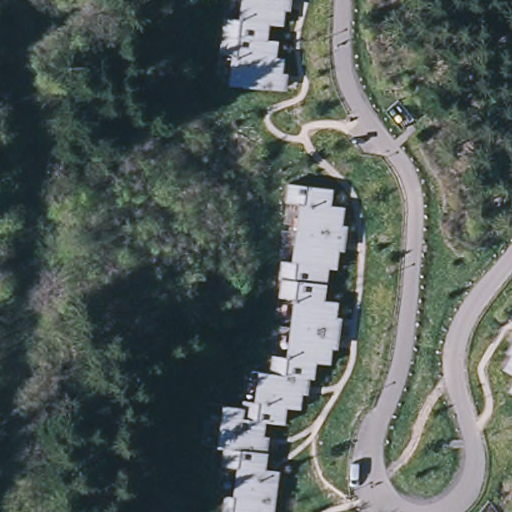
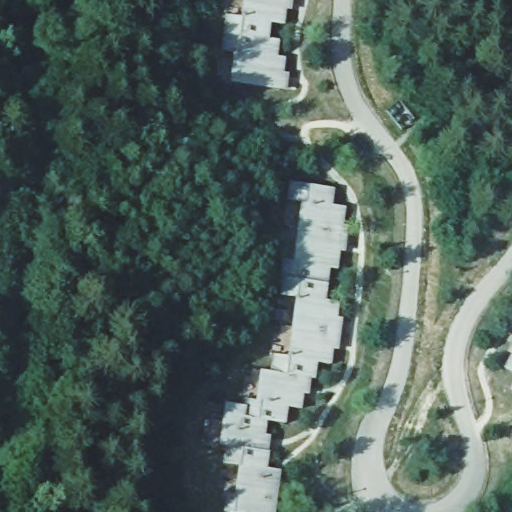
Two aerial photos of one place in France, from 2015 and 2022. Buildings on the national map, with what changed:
unchanged [(301,0),(301,3),(293,2),(292,8),(285,7),(283,24),(269,23),(267,39),(223,34),(226,16),(242,18),(244,0),(286,0),(286,2),(290,2),(290,0),(301,0)]
unchanged [(289,81),(297,82),(295,89),(284,88),(285,80),(282,80),(280,90),(233,84),(237,54),(222,52),(223,34),(267,39),(278,40),(276,57),(284,58),(282,74),(290,75),(289,81)]
unchanged [(345,231),(352,232),(350,244),(347,244),(347,250),(339,249),(337,268),(328,267),(327,284),(283,278),(280,278),(282,260),(297,262),(305,203),(287,200),(289,182),(333,188),(331,204),(345,206),(340,243),(343,243),(345,231)]
unchanged [(337,335),(350,336),(349,343),(340,342),(340,348),(332,347),(330,364),(316,362),(314,378),(304,377),(270,373),(273,355),(288,357),(296,298),(280,296),(283,278),(327,284),(324,300),(338,302),(336,319),(343,320),(342,326),(350,327),(350,334),(338,333),(339,325),(335,325),(333,341),(337,342),(337,335)]
unchanged [(502,371),(510,359),(505,354),(512,341),(512,377),(502,371)]
unchanged [(260,402),(264,372),(270,373),(304,377),(303,386),(310,387),(310,393),(318,394),(317,401),(305,400),(307,392),(302,392),(300,408),(286,407),(284,423),(265,421),(242,418),(244,407),(243,407),(245,400),(260,402)]
unchanged [(508,391),(512,384),(512,393),(508,391)]
unchanged [(270,444),(278,445),(277,452),(265,451),(267,443),(262,443),(261,452),(225,447),(225,448),(219,447),(225,405),(243,407),(244,407),(242,418),(265,421),(263,437),(270,438),(270,444)]
unchanged [(225,495),(235,497),(238,467),(223,465),(225,448),(225,447),(261,452),(267,452),(265,469),(272,470),(271,474),(277,475),(276,482),(277,483),(274,512),(223,512),(225,495)]

